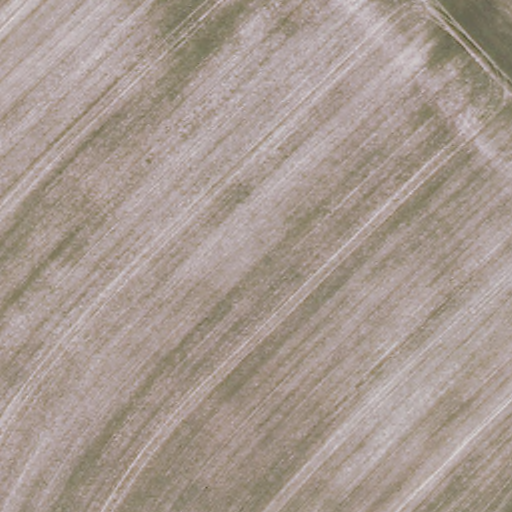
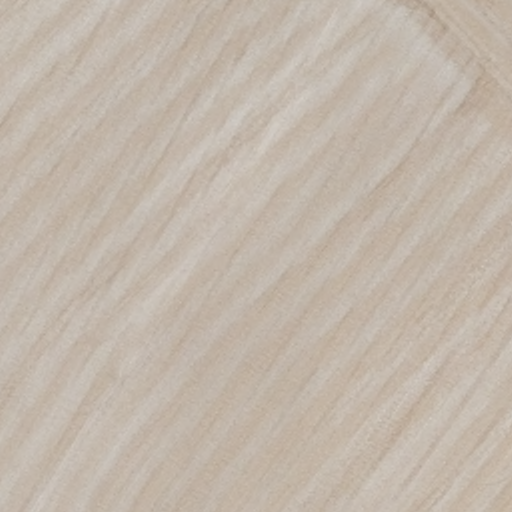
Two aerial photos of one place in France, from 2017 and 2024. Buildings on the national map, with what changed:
[]

